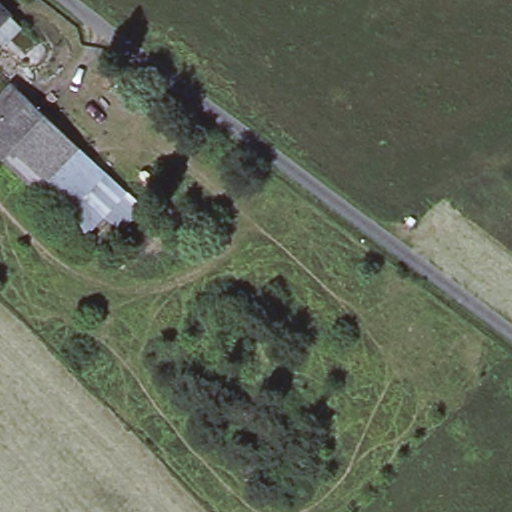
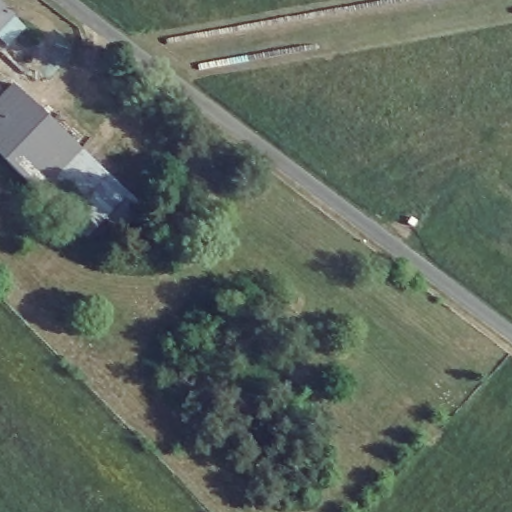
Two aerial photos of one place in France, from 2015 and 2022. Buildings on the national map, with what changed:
unchanged [(0,34),(0,11),(12,22),(0,34)]
unchanged [(57,127),(15,172),(0,157),(0,96),(12,84),(57,127)]
unchanged [(57,127),(73,143),(31,187),(15,172),(57,127)]
unchanged [(73,143),(105,173),(63,217),(31,187),(73,143)]
unchanged [(119,228),(106,215),(85,237),(63,217),(105,173),(126,193),(140,206),(119,228)]

